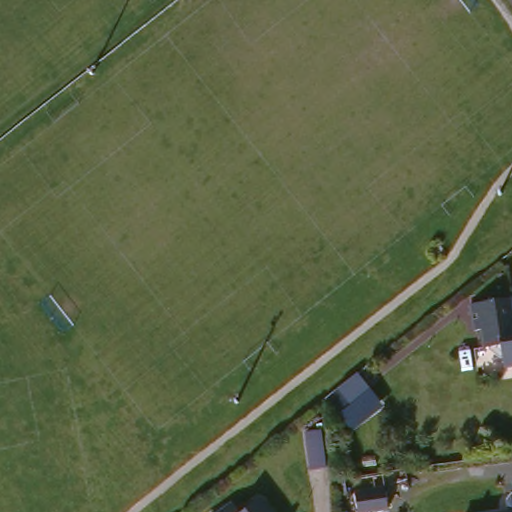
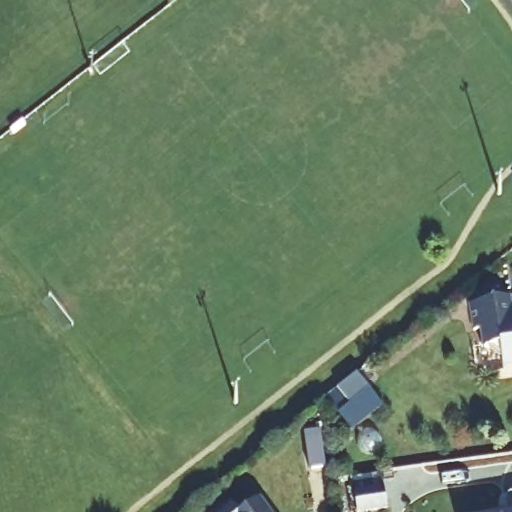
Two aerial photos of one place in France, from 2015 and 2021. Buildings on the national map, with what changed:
unchanged [(512,302),(512,370),(503,371),(498,352),(485,352),(481,331),(472,332),(468,307),(511,298),(512,302)]
unchanged [(353,403),(360,411),(365,418),(342,435),(338,428),(327,436),(320,427),(353,403)]
unchanged [(387,510),(372,512),(357,512),(355,492),(385,489),(387,510)]
unchanged [(250,512),(262,500),(272,512),(250,512)]
unchanged [(236,512),(219,512),(229,503),(236,512)]

